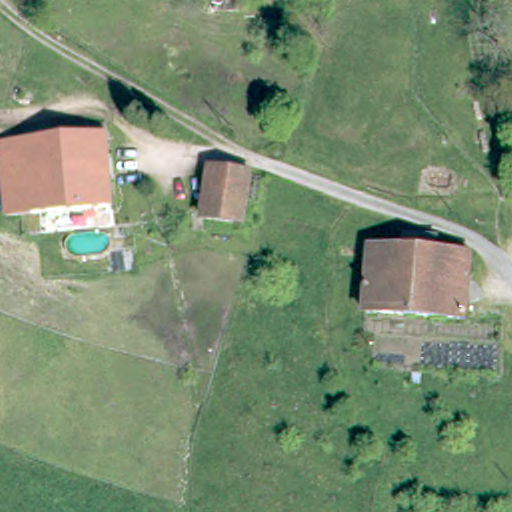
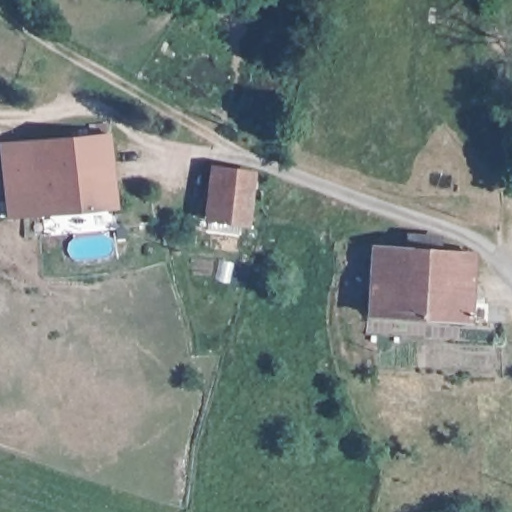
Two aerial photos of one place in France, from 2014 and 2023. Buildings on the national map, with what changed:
unchanged [(237,12),(212,12),(213,0),(237,0),(237,12)]
unchanged [(107,127),(114,211),(7,220),(3,145),(43,143),(90,140),(90,129),(107,127)]
unchanged [(241,210),(238,229),(201,224),(207,173),(247,177),(247,182),(257,184),(254,210),(241,210)]
unchanged [(367,313),(373,245),(473,254),(470,319),(367,313)]

